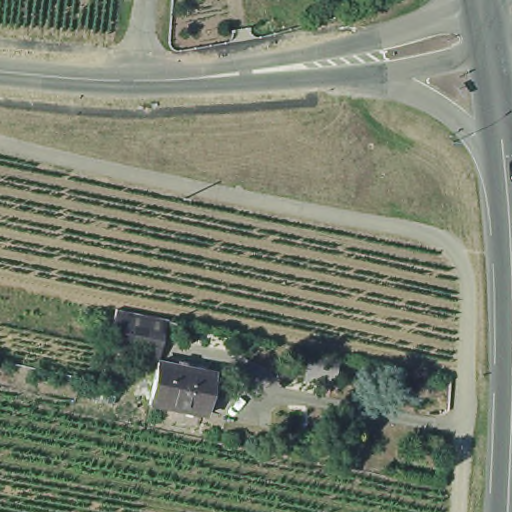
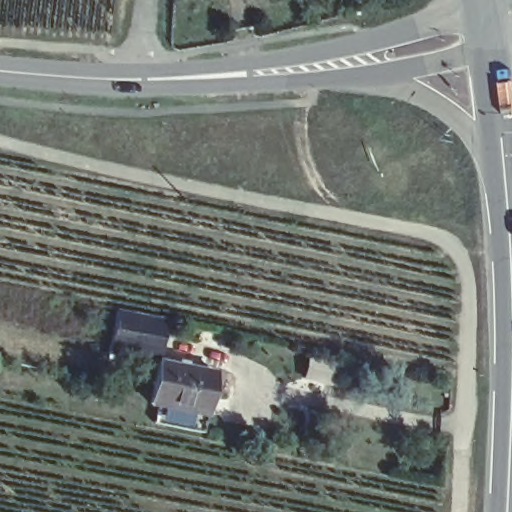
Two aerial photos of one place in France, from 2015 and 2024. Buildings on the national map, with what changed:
unchanged [(111,348),(112,338),(120,307),(170,318),(162,355),(160,354),(159,356),(127,349),(127,352),(125,363),(120,383),(105,380),(106,373),(109,359),(111,348)]
unchanged [(217,366),(209,410),(150,397),(159,356),(162,355),(217,366)]

